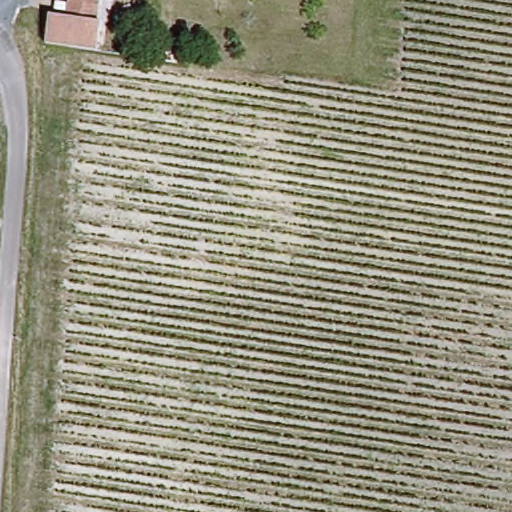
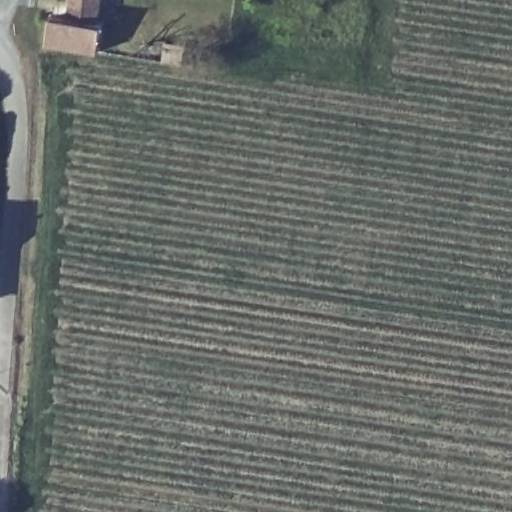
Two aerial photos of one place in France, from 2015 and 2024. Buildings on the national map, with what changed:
unchanged [(43,10),(68,13),(71,0),(96,0),(93,19),(90,51),(40,42),(43,10)]

